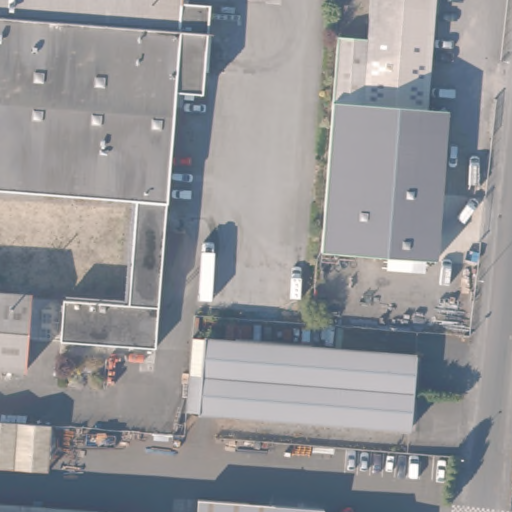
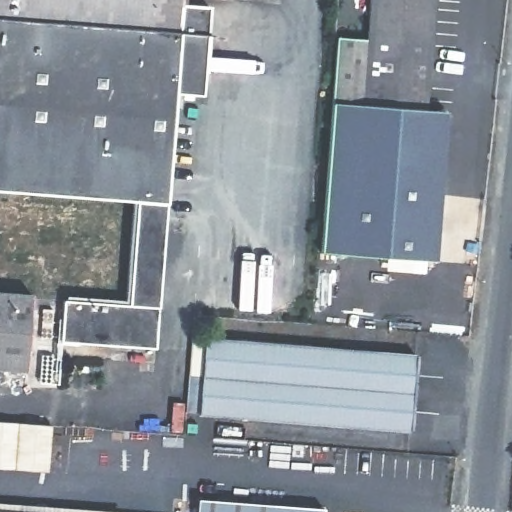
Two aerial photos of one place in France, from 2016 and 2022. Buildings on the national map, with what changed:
unchanged [(214,24),(204,108),(174,105),(146,359),(54,352),(59,305),(119,312),(131,203),(0,188),(0,0),(183,0),(182,20),(214,24)]
unchanged [(436,114),(441,123),(444,131),(429,266),(312,255),(334,39),(367,42),(371,0),(438,0),(426,113),(436,114)]
unchanged [(21,375),(0,373),(0,298),(29,301),(21,375)]
unchanged [(187,414),(198,335),(222,338),(210,417),(187,414)]
unchanged [(412,365),(411,373),(401,441),(210,417),(222,338),(374,359),(412,365)]
unchanged [(44,477),(0,471),(0,422),(49,427),(44,477)]
unchanged [(0,511),(7,512),(0,512),(0,511)]

